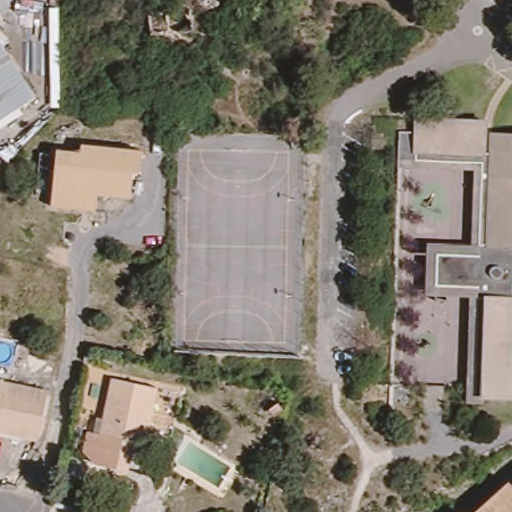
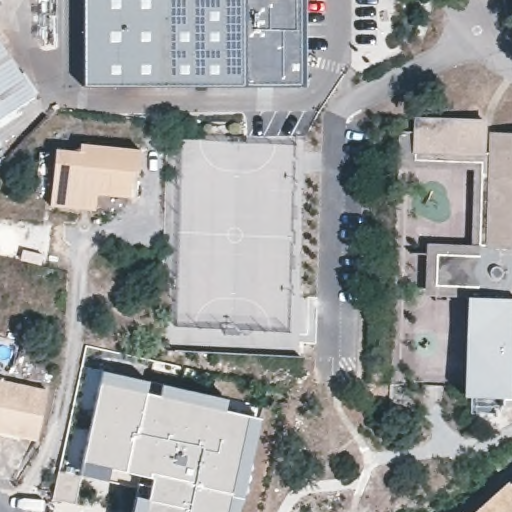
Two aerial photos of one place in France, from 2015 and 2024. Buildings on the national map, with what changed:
new [(306,86),(85,84),(86,0),(306,0),(306,86)]
unchanged [(0,113),(0,38),(34,91),(0,113)]
unchanged [(486,117),(486,130),(512,130),(512,398),(477,397),(477,407),(458,407),(462,296),(422,295),(423,246),(463,247),(464,165),(393,163),(394,131),(412,132),(412,115),(486,117)]
unchanged [(75,207),(49,205),(55,149),(79,151),(79,143),(140,149),(138,171),(131,170),(129,196),(95,192),(94,209),(75,207)]
demolished [(154,383),(143,439),(125,436),(118,435),(113,453),(88,448),(92,430),(99,431),(103,416),(112,375),(154,383)]
unchanged [(41,434),(0,426),(0,377),(50,388),(41,434)]
new [(229,512),(142,512),(148,472),(79,460),(98,382),(248,412),(229,512)]
unchanged [(512,484),(512,512),(469,512),(507,479),(511,485),(512,484)]
unchanged [(463,512),(458,512),(461,510),(463,512)]

